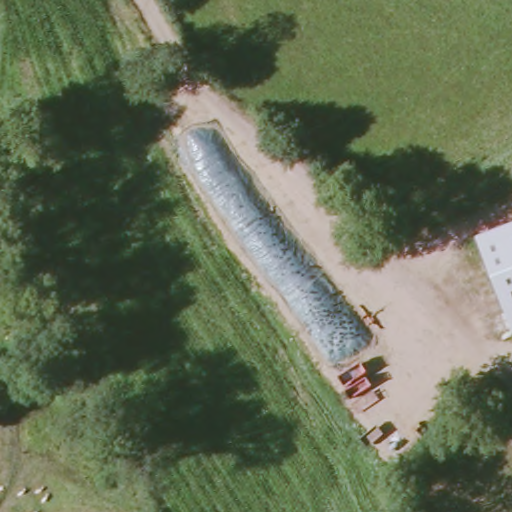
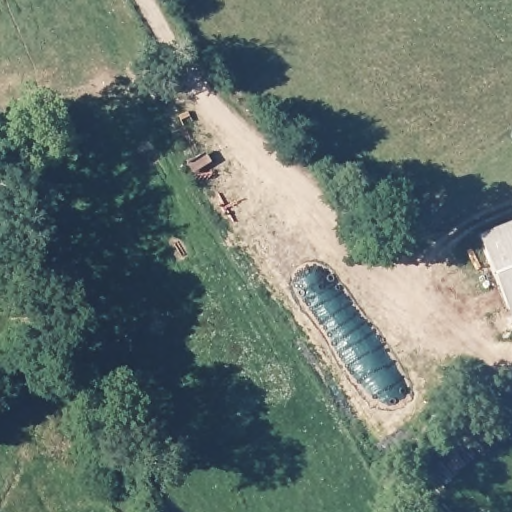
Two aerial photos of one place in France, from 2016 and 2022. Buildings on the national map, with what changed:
unchanged [(512,215),(512,330),(474,230),(512,215)]

